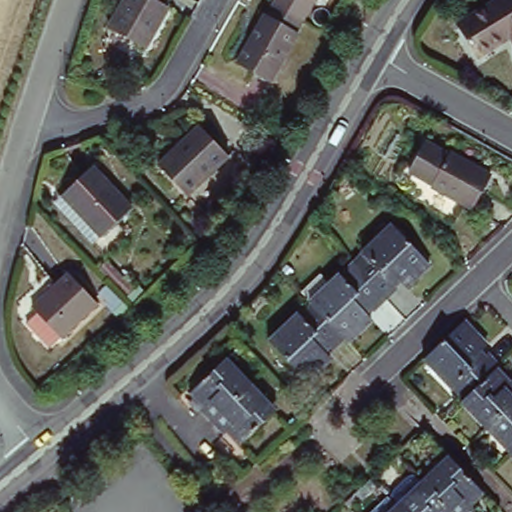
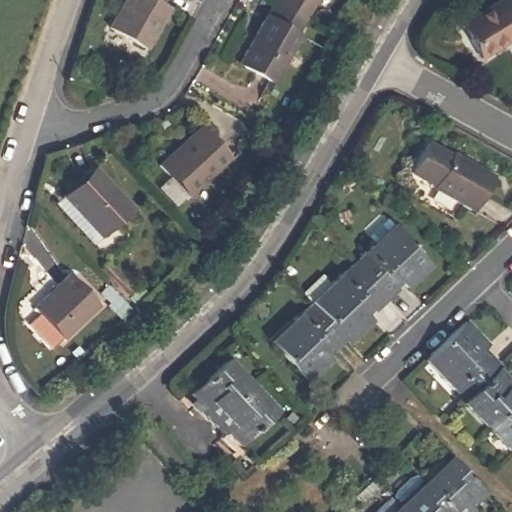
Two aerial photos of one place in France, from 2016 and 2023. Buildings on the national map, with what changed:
unchanged [(144,45),(106,24),(120,0),(162,0),(167,3),(144,45)]
unchanged [(300,28),(303,30),(274,79),(240,60),(269,11),(272,11),(279,0),(308,16),(300,28)]
unchanged [(483,53),(462,20),(496,0),(512,0),(512,35),(483,53)]
unchanged [(187,197),(157,166),(199,128),(228,159),(187,197)]
unchanged [(473,210),(407,174),(426,141),(490,177),(473,210)]
unchanged [(100,234),(60,193),(94,162),(133,202),(100,234)]
unchanged [(361,250),(359,248),(372,236),(377,241),(394,225),(429,261),(404,284),(397,276),(392,281),(394,285),(384,295),(351,260),(361,250)]
unchanged [(331,283),(328,279),(338,269),(339,270),(351,260),(384,295),(371,306),(368,303),(363,307),(371,316),(348,338),(343,333),(312,301),(331,283)]
unchanged [(61,340),(48,349),(25,325),(35,315),(31,309),(68,275),(97,306),(61,340)]
unchanged [(330,345),(327,341),(322,345),(330,354),(305,377),(272,340),(290,323),(286,319),(298,308),(299,308),(309,298),(312,301),(343,333),(330,345)]
unchanged [(453,392),(451,391),(442,382),(447,377),(428,358),(465,323),(488,346),(477,356),(483,361),(486,357),(498,369),(462,402),(453,392)]
unchanged [(200,408),(202,404),(189,389),(224,357),(249,384),(210,419),(200,408)]
unchanged [(462,402),(498,369),(511,382),(512,381),(512,404),(487,428),(462,402)]
unchanged [(273,410),(238,441),(225,429),(222,432),(210,419),(249,384),(273,410)]
unchanged [(487,428),(512,404),(512,453),(487,428)]
unchanged [(471,508),(473,510),(470,512),(451,512),(423,484),(449,459),(484,495),(471,508)]
unchanged [(398,508),(423,484),(451,512),(401,512),(398,508)]
unchanged [(398,508),(401,512),(393,512),(398,508)]

